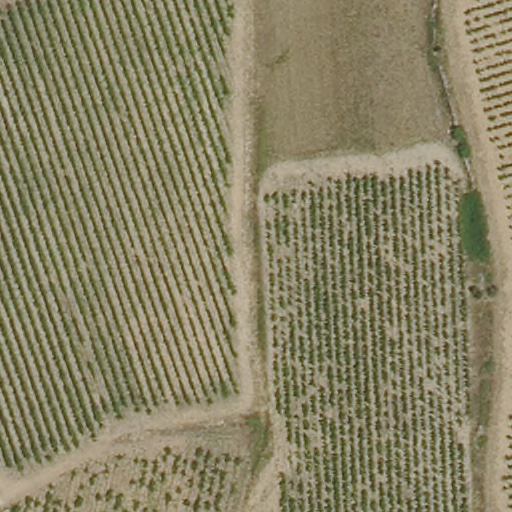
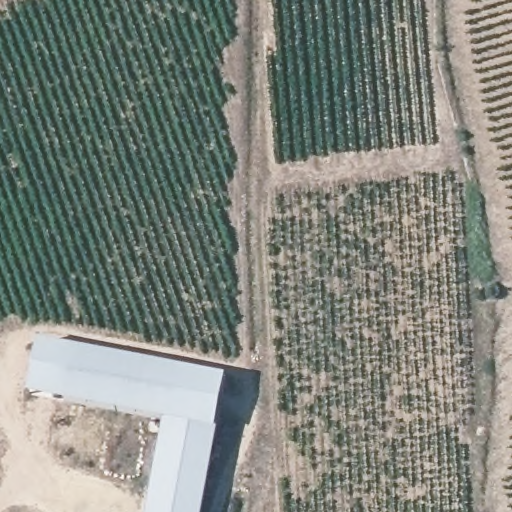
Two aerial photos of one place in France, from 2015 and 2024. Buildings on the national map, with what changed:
new [(39,351),(225,384),(202,512),(149,512),(167,422),(30,398),(39,351)]

